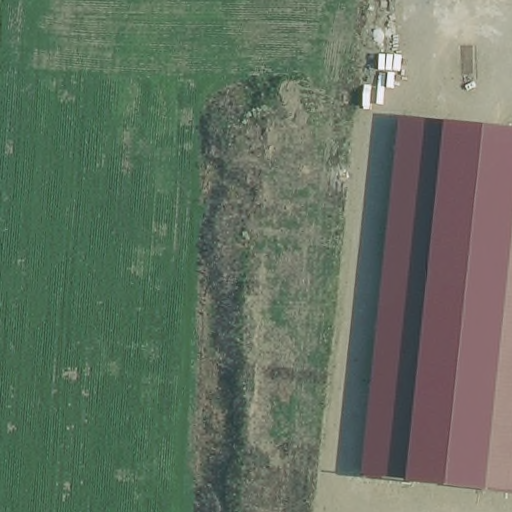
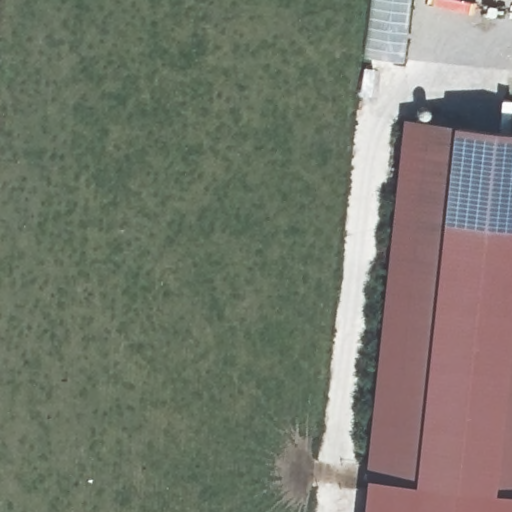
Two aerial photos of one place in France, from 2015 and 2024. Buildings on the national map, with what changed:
new [(369,0),(408,0),(398,59),(362,53),(369,0)]
unchanged [(512,130),(512,493),(486,490),(410,482),(363,477),(402,118),(448,123),(512,130)]
new [(410,482),(486,490),(512,493),(512,512),(360,512),(363,477),(410,482)]

